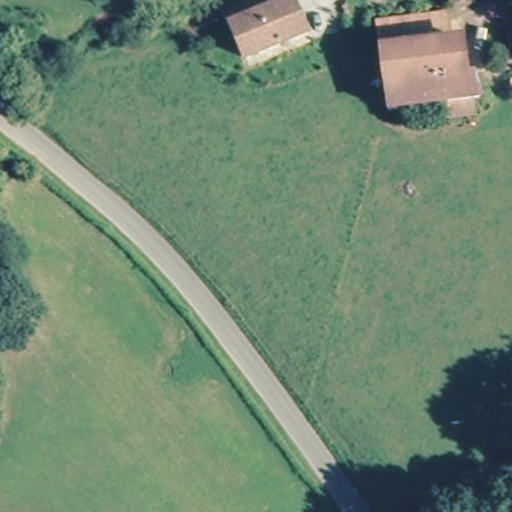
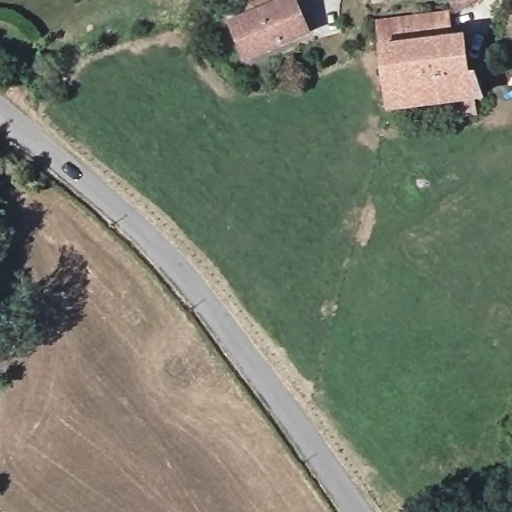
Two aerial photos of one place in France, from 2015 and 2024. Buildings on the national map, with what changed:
unchanged [(270,0),(292,0),(306,25),(247,56),(229,22),(270,0)]
unchanged [(446,12),(451,11),(461,75),(477,73),(479,97),(391,112),(375,22),(446,12)]

